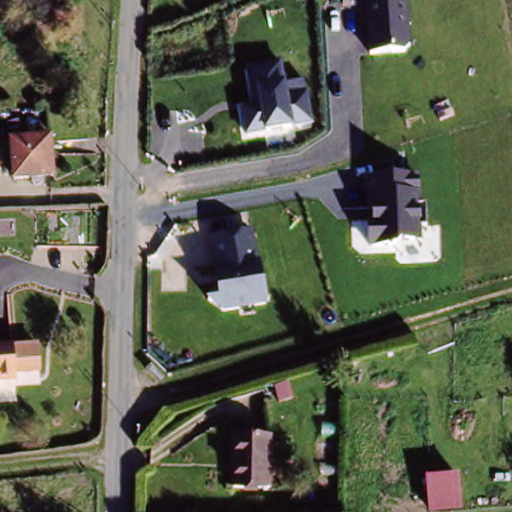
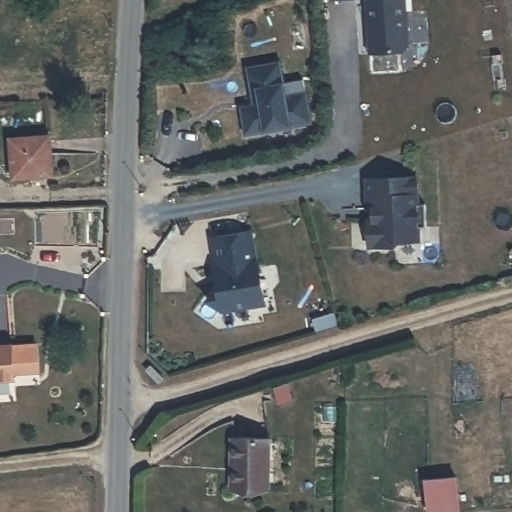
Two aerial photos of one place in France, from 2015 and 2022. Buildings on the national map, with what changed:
unchanged [(411,43),(405,49),(369,53),(365,0),(407,0),(411,43)]
unchanged [(284,82),(305,80),(313,119),(242,137),(238,106),(249,105),(247,68),(282,60),(284,82)]
unchanged [(45,186),(37,186),(37,194),(24,193),(25,185),(5,185),(5,134),(45,135),(45,186)]
unchanged [(418,175),(420,243),(367,244),(365,177),(418,175)]
unchanged [(206,301),(215,287),(210,238),(254,231),(267,305),(220,313),(206,301)]
unchanged [(15,377),(0,379),(0,343),(11,342),(15,377)]
unchanged [(263,437),(269,437),(268,493),(228,492),(231,437),(263,437)]
unchanged [(460,507),(427,511),(425,478),(457,477),(460,507)]

